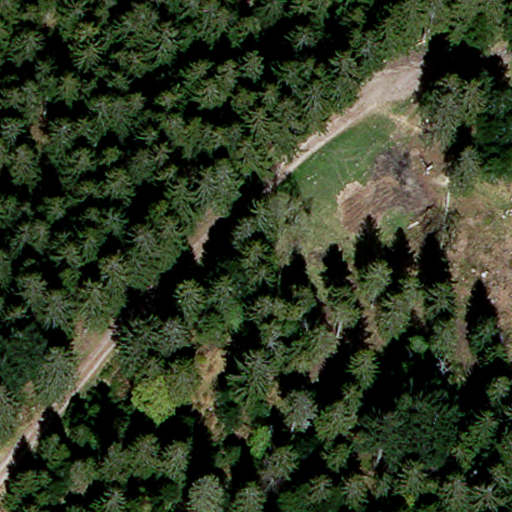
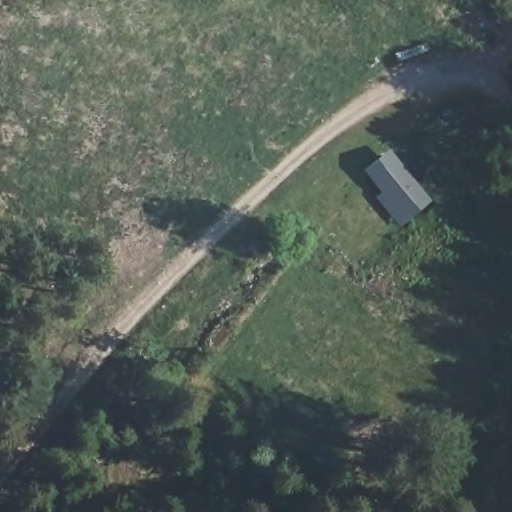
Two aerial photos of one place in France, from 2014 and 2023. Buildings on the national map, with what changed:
new [(363,170),(389,150),(431,201),(400,226),(375,197),(382,193),(363,170)]
demolished [(405,180),(427,200),(416,214),(394,190),(405,180)]

